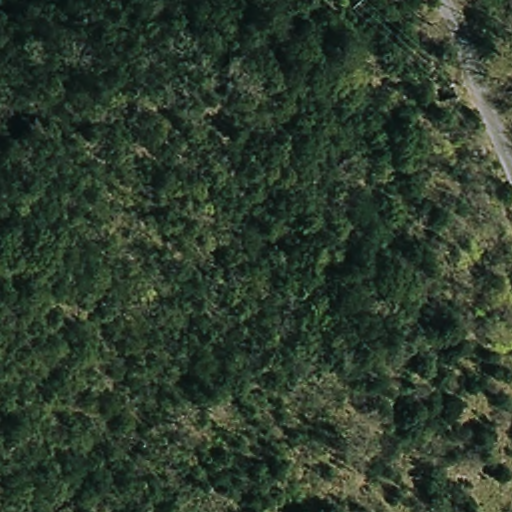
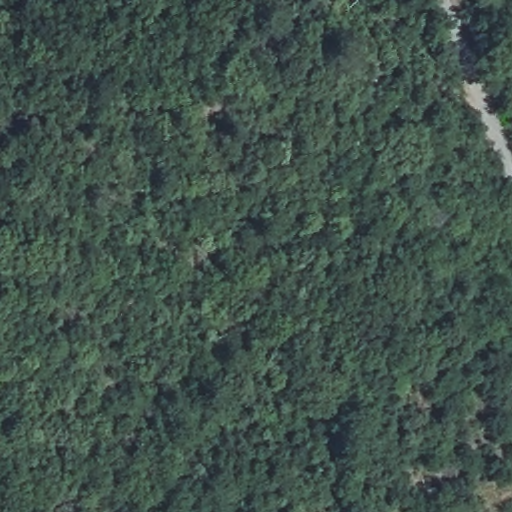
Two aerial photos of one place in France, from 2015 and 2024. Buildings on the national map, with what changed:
unchanged [(443,80),(451,98),(429,107),(421,89),(443,80)]

